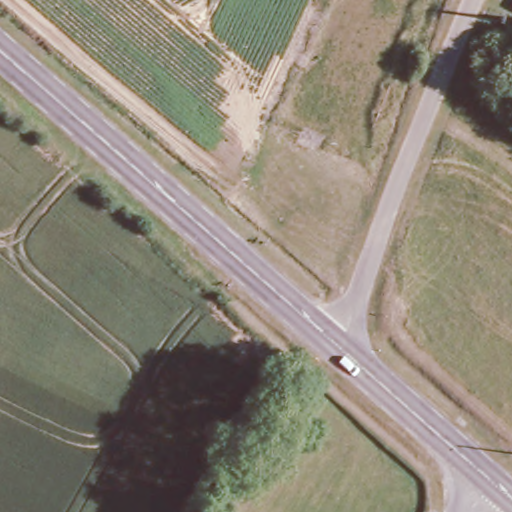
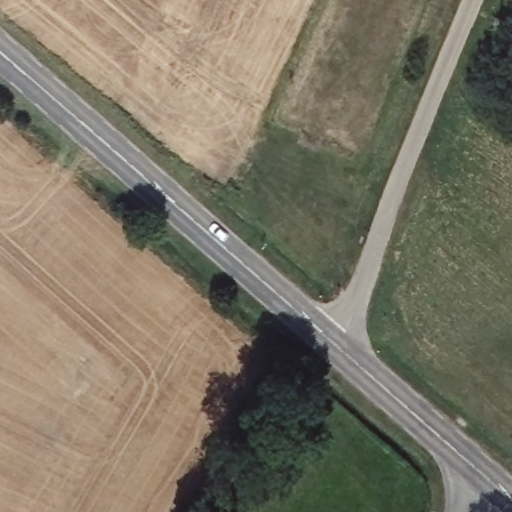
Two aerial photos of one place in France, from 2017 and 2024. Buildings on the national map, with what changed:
unchanged [(205,447),(222,458),(201,494),(183,485),(205,447)]

